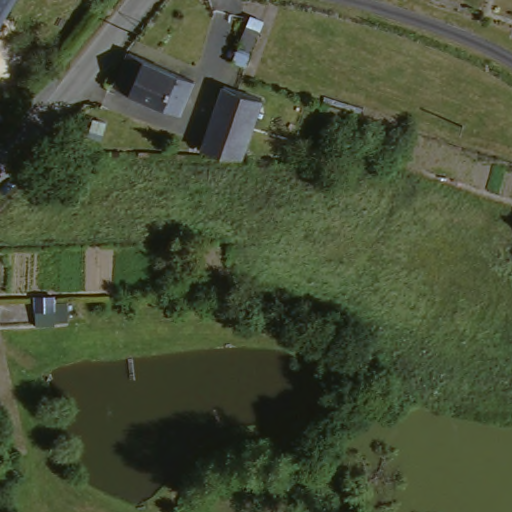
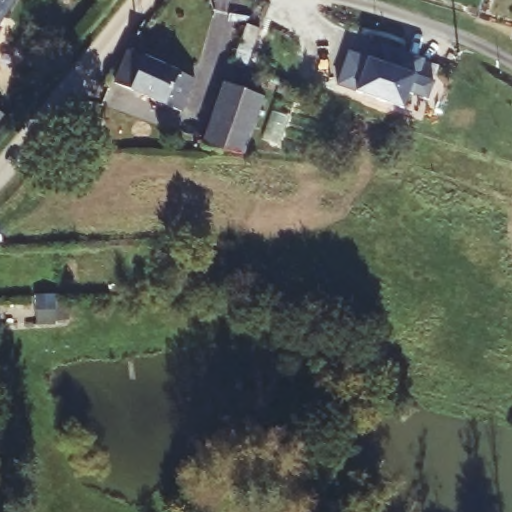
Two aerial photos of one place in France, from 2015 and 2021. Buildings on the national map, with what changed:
unchanged [(11,0),(0,16),(0,0),(11,0)]
new [(249,18),(262,23),(245,67),(232,63),(249,18)]
new [(348,54),(373,62),(379,46),(420,60),(414,76),(433,83),(427,99),(408,93),(403,109),(336,86),(348,54)]
unchanged [(152,64),(200,85),(187,115),(140,94),(121,85),(135,54),(152,64)]
unchanged [(203,144),(221,83),(262,98),(242,159),(203,144)]
unchanged [(1,119),(0,121),(0,119),(1,119)]
unchanged [(37,294),(55,293),(56,305),(38,305),(37,294)]

